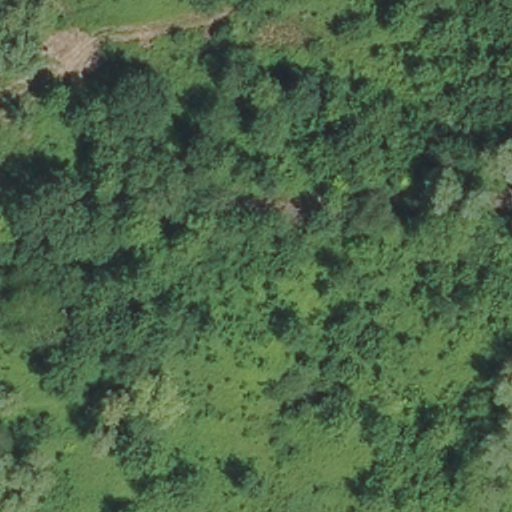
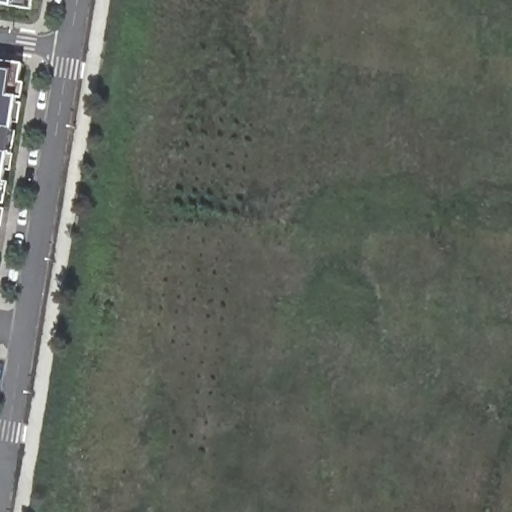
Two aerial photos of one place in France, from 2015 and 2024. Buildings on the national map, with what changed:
new [(0,5),(0,0),(33,0),(31,11),(0,5)]
new [(0,195),(0,63),(20,66),(0,195)]

